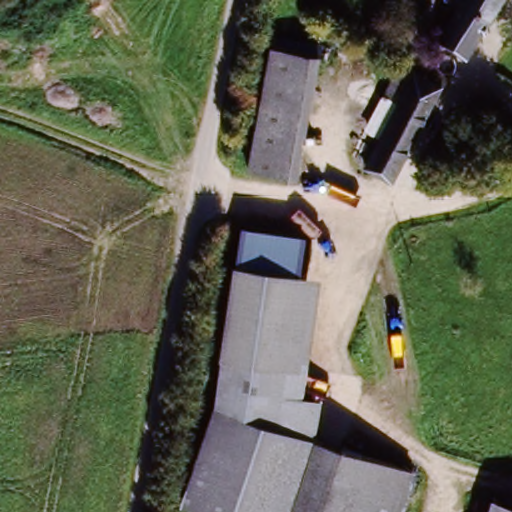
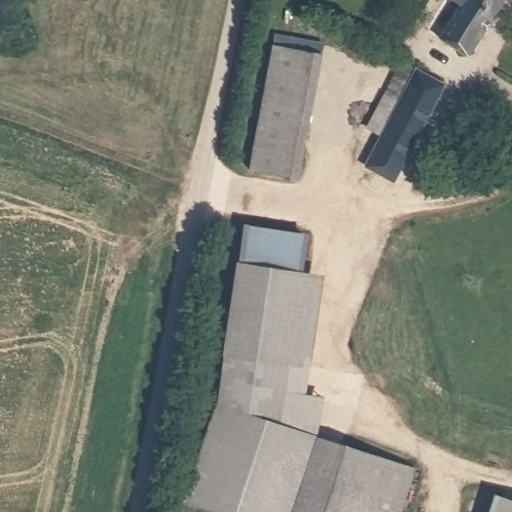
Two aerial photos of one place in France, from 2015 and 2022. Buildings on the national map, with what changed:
unchanged [(446,40),(465,5),(454,0),(505,0),(472,55),(446,40)]
unchanged [(322,60),(299,183),(252,174),(276,50),(322,60)]
unchanged [(385,136),(371,128),(407,66),(421,74),(385,136)]
unchanged [(447,89),(392,181),(367,166),(385,136),(421,74),(447,89)]
unchanged [(244,227),(304,236),(298,268),(239,259),(244,227)]
unchanged [(306,275),(280,425),(219,405),(245,265),(306,275)]
unchanged [(321,278),(302,400),(321,401),(320,440),(280,425),(306,275),(321,278)]
unchanged [(187,500),(219,405),(280,425),(320,440),(295,512),(221,512),(187,500)]
unchanged [(320,440),(420,475),(407,512),(295,512),(320,440)]
unchanged [(490,509),(498,512),(488,512),(490,509)]

